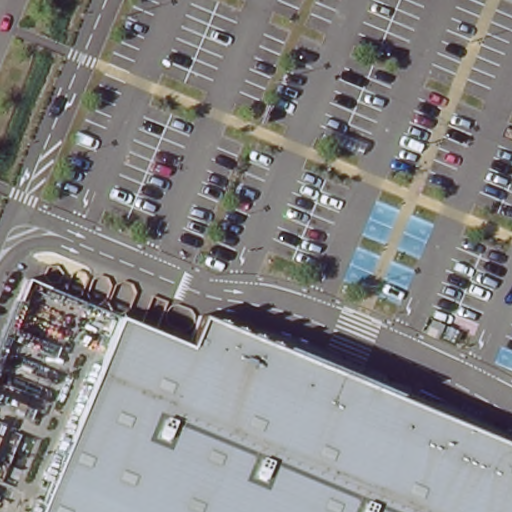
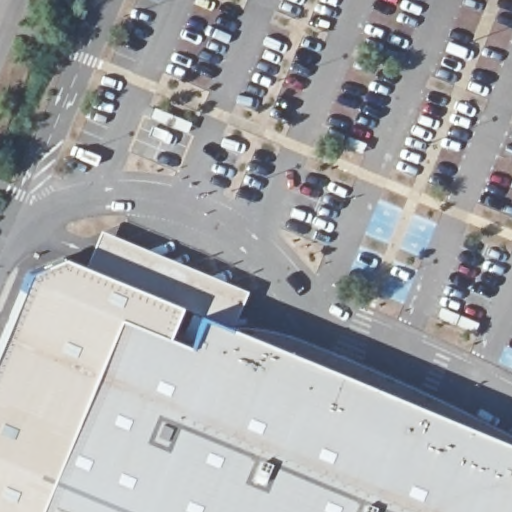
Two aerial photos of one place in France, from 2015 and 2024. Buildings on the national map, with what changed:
new [(188,350),(118,322),(40,512),(0,512),(0,339),(28,272),(62,258),(85,267),(100,232),(246,291),(230,331),(201,319),(188,350)]
unchanged [(118,322),(188,350),(201,319),(233,332),(296,358),(284,388),(373,425),(376,417),(386,395),(398,400),(512,447),(512,512),(40,512),(118,322)]
unchanged [(233,332),(238,333),(248,334),(259,336),(268,337),(277,341),(286,343),(295,346),(304,349),(313,352),(321,356),(331,359),(340,362),(348,366),(357,370),(366,373),(373,376),(374,377),(383,381),(392,385),(394,386),(400,388),(409,392),(418,397),(427,401),(436,405),(445,409),(454,413),(463,417),(472,422),(481,427),(490,431),(498,435),(507,440),(512,443),(512,447),(398,400),(386,395),(376,417),(373,425),(284,388),(296,358),(233,332)]

